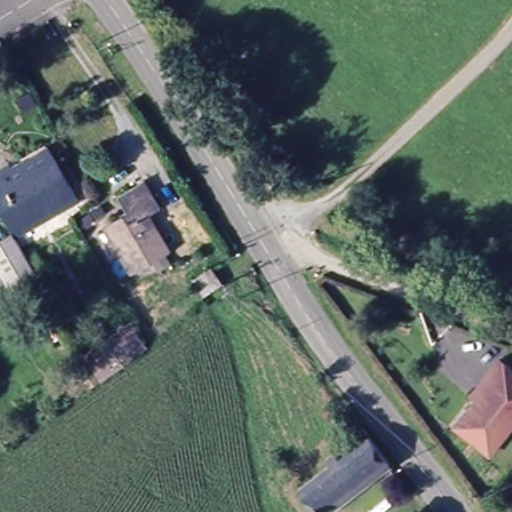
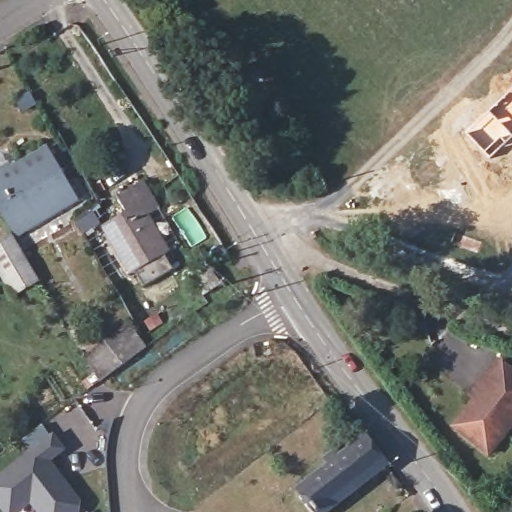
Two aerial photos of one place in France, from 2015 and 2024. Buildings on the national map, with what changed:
new [(491,158),(467,133),(512,89),(512,138),(491,158)]
unchanged [(54,155),(80,198),(15,236),(14,234),(2,213),(0,210),(0,153),(6,163),(9,168),(48,145),(54,155)]
unchanged [(154,276),(147,265),(133,273),(105,224),(128,210),(121,198),(146,183),(160,207),(148,214),(168,251),(165,254),(171,266),(154,276)]
unchanged [(40,279),(14,294),(0,270),(0,242),(14,234),(15,236),(40,279)]
unchanged [(223,282),(203,295),(192,277),(212,265),(223,282)]
unchanged [(90,363),(138,328),(147,345),(100,381),(90,363)]
unchanged [(494,454),(458,426),(497,378),(493,374),(505,360),(512,366),(512,432),(494,454)]
new [(50,459),(57,469),(61,473),(81,499),(80,509),(76,512),(42,512),(32,499),(16,512),(8,512),(0,501),(0,476),(54,433),(65,447),(50,459)]
unchanged [(390,460),(323,512),(318,512),(301,488),(338,458),(368,435),(390,460)]

